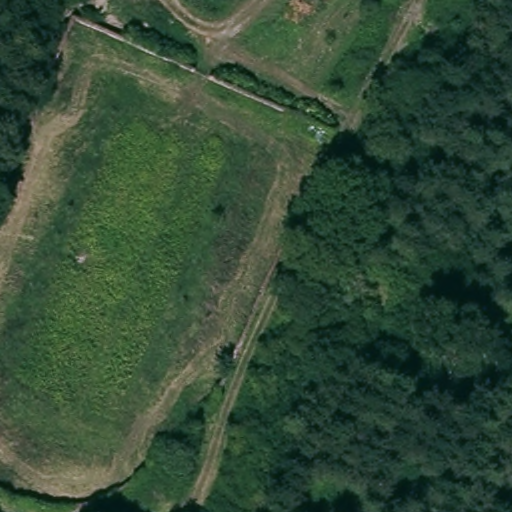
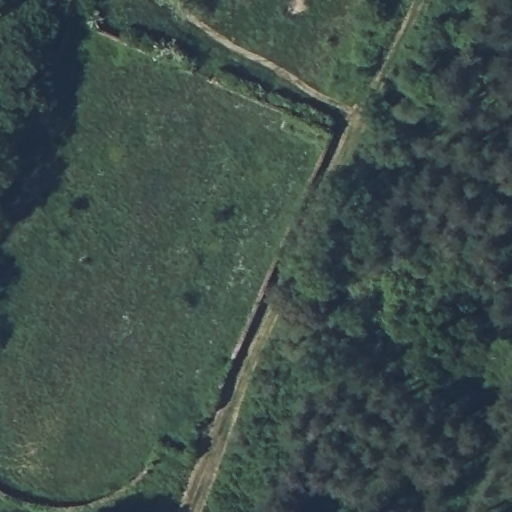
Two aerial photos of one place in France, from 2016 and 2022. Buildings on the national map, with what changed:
unchanged [(20,107),(17,113),(10,129),(0,125),(0,105),(2,100),(20,107)]
unchanged [(281,103),(326,123),(324,126),(320,136),(275,117),(281,103)]

